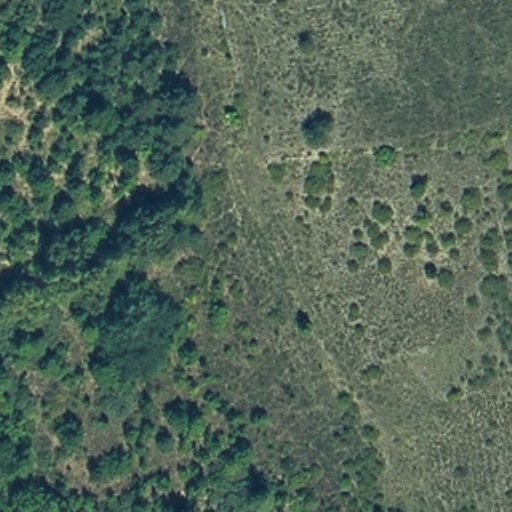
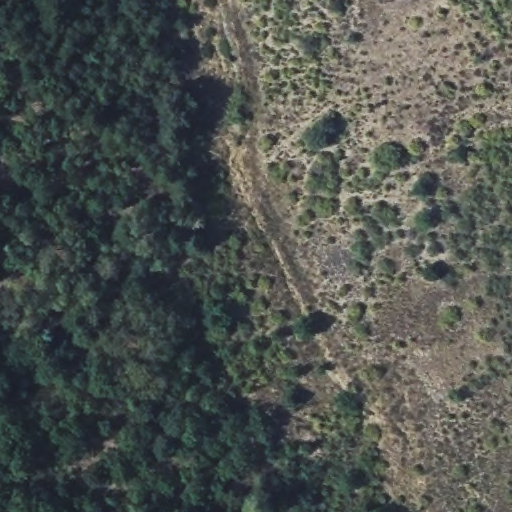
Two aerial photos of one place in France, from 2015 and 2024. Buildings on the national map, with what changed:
[]

